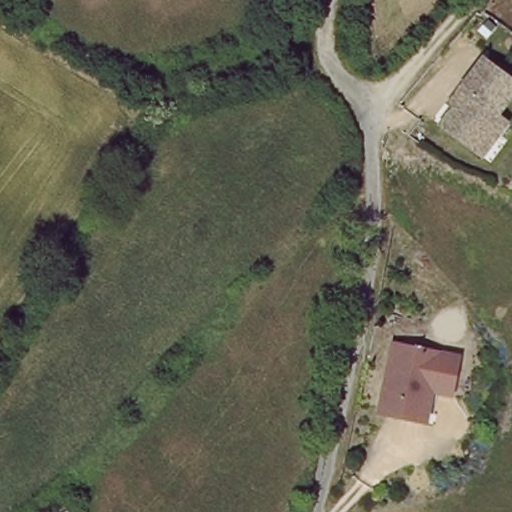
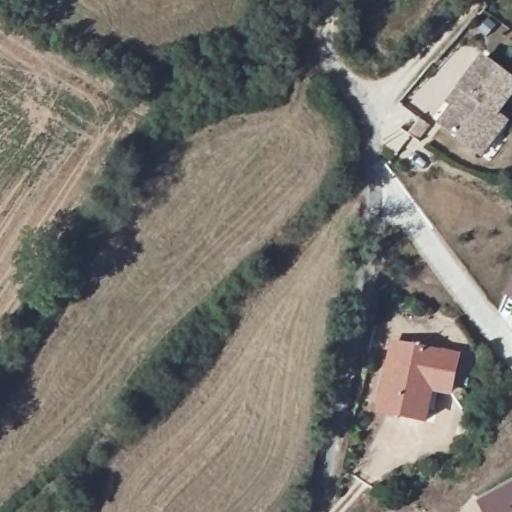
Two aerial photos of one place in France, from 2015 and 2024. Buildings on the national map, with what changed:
unchanged [(480,149),(448,128),(460,110),(455,106),(465,90),(485,59),(512,76),(512,101),(503,114),(512,120),(512,124),(490,156),(480,149)]
new [(512,282),(512,297),(507,295),(512,282)]
unchanged [(385,417),(393,347),(440,352),(461,354),(457,392),(436,390),(432,423),(385,417)]
new [(512,512),(484,512),(479,502),(512,484),(512,512)]

